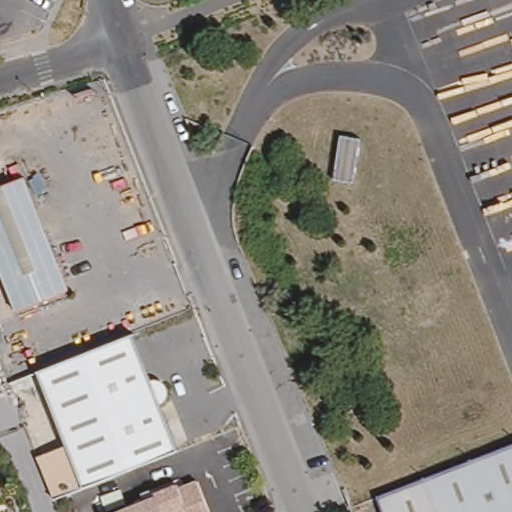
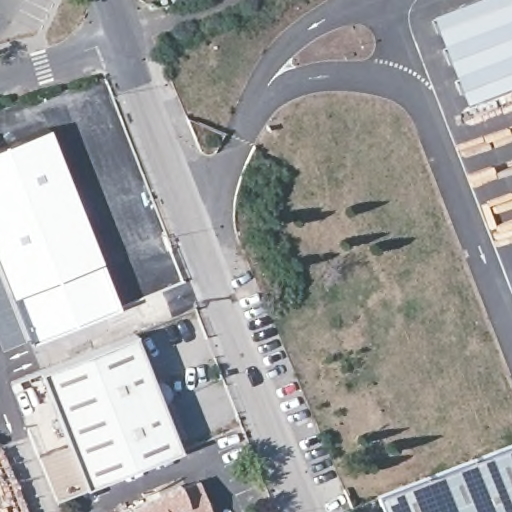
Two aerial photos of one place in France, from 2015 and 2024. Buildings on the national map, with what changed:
new [(465,0),(512,0),(512,82),(463,101),(430,14),(465,0)]
demolished [(489,0),(512,0),(512,59),(489,0)]
new [(118,309),(30,343),(18,317),(71,296),(26,183),(0,193),(0,146),(48,128),(118,309)]
unchanged [(71,296),(18,317),(0,272),(0,193),(26,183),(71,296)]
unchanged [(90,488),(45,372),(138,335),(157,382),(172,388),(166,404),(185,451),(90,488)]
unchanged [(70,453),(81,481),(80,483),(62,490),(60,489),(49,461),(50,459),(68,452),(70,453)]
unchanged [(377,512),(377,511),(512,459),(512,512),(377,512)]
unchanged [(148,495),(161,491),(162,494),(185,486),(185,487),(203,480),(216,512),(127,512),(151,502),(148,495)]

